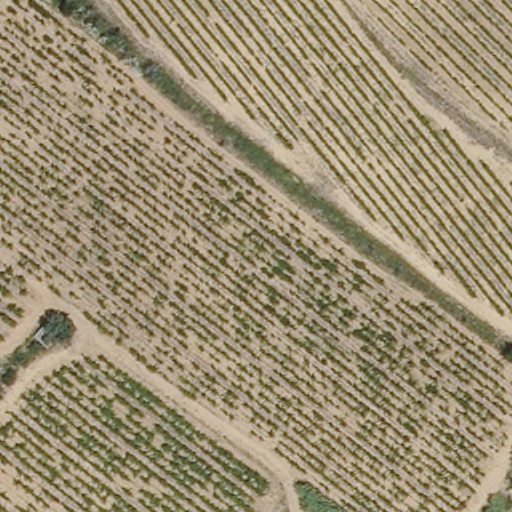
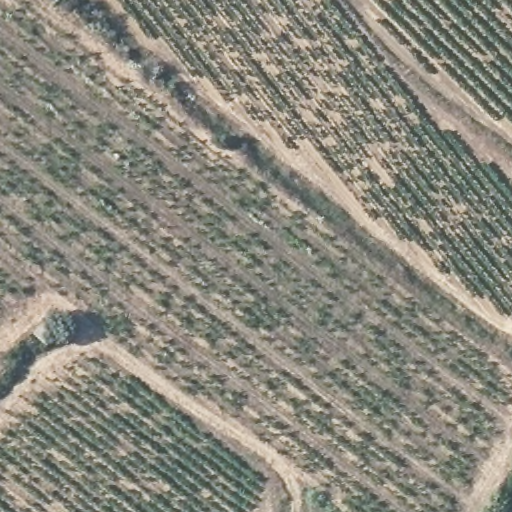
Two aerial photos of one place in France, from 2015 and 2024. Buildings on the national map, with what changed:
unchanged [(30,337),(48,326),(59,340),(45,350),(30,337)]

